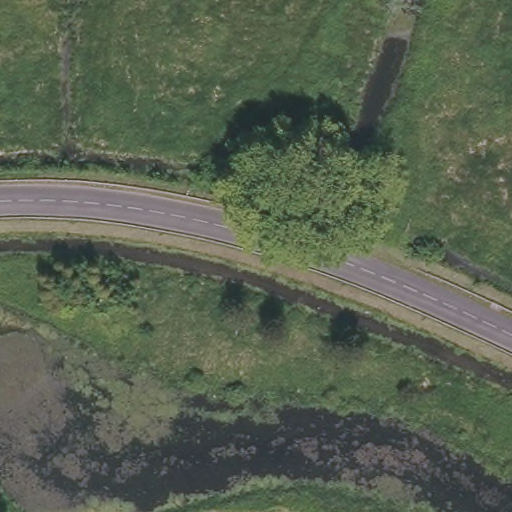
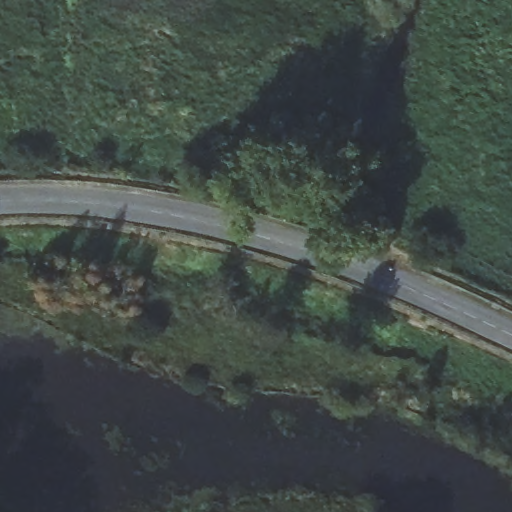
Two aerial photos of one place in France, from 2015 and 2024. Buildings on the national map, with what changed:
[]

